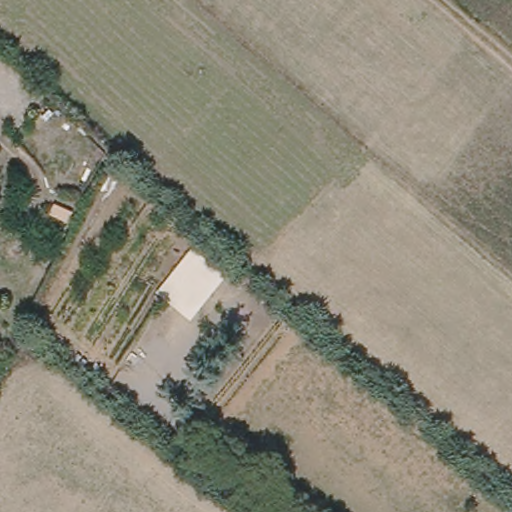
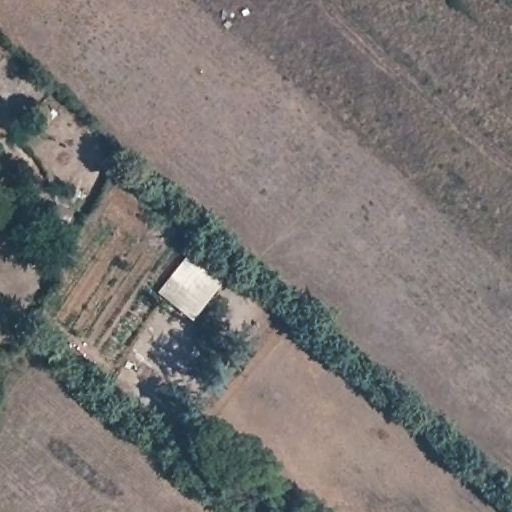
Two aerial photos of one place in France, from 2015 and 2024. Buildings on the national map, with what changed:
unchanged [(58,198),(78,205),(70,225),(49,219),(58,198)]
unchanged [(154,291),(188,245),(226,276),(191,319),(154,291)]

